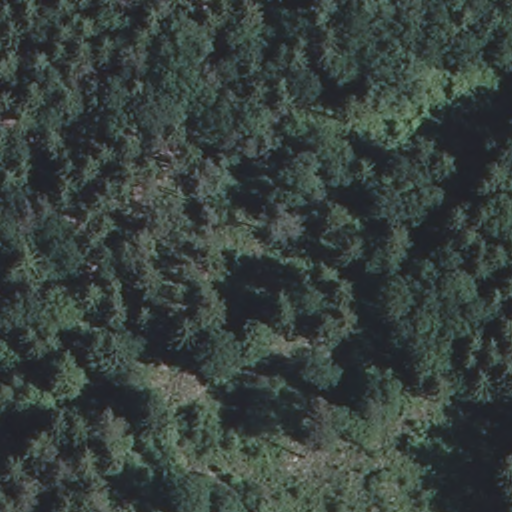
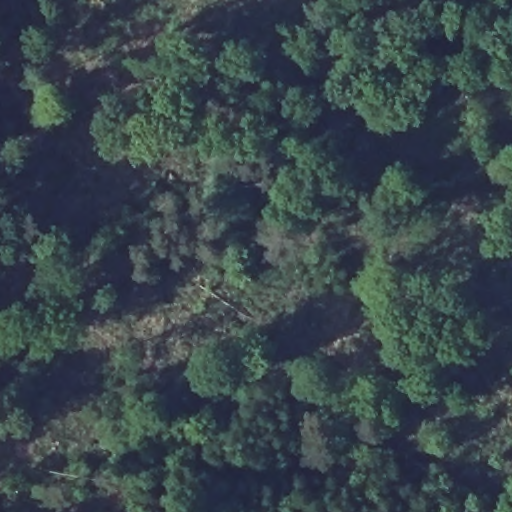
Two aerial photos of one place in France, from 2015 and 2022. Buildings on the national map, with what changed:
[]

